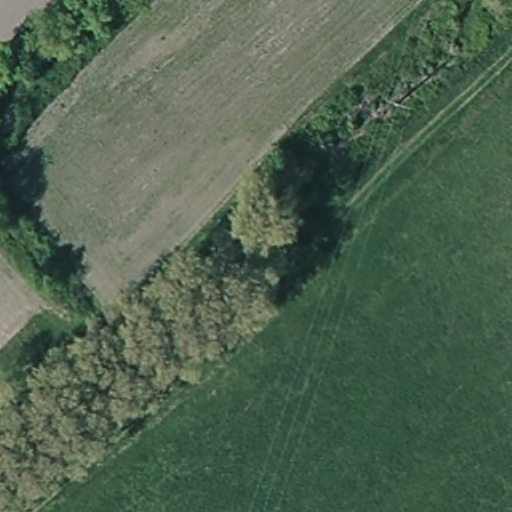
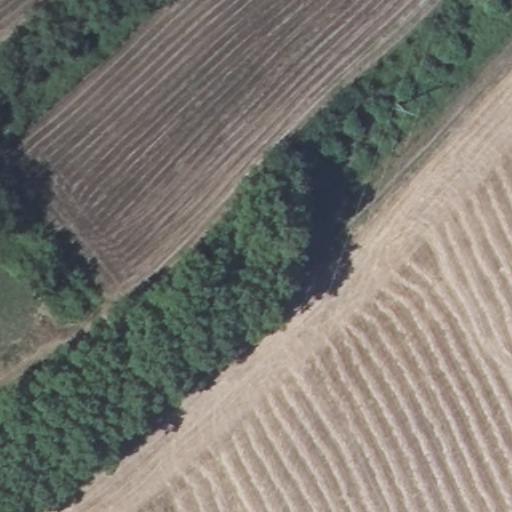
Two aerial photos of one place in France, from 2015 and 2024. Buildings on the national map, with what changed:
unchanged [(7,143),(0,149),(0,134),(7,143)]

